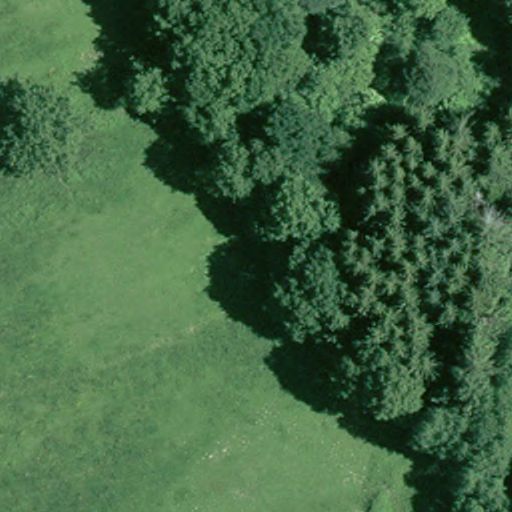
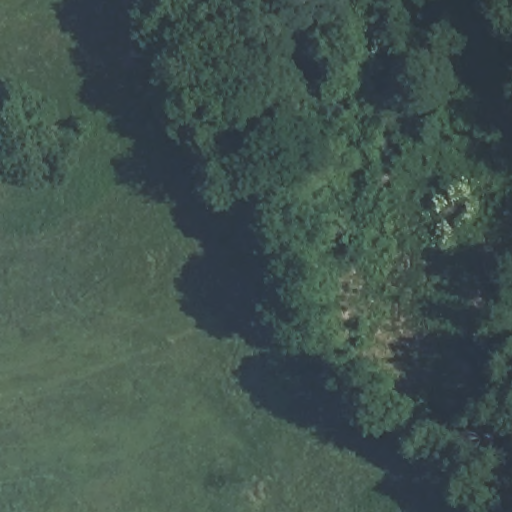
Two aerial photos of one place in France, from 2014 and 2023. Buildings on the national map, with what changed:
[]

